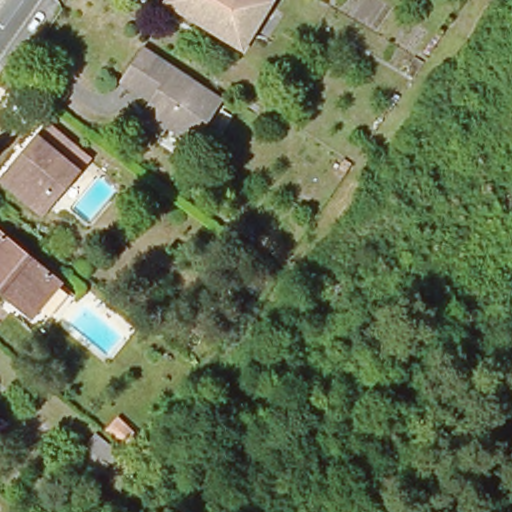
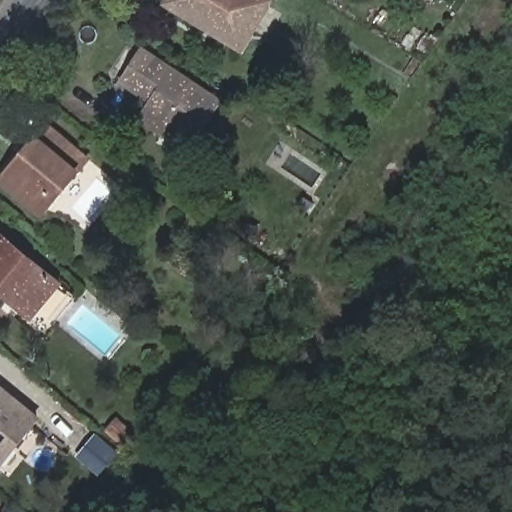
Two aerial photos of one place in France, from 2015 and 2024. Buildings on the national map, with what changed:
unchanged [(179,1),(175,7),(165,1),(166,0),(273,0),(246,42),(179,1)]
unchanged [(228,101),(199,145),(148,110),(154,101),(125,80),(147,47),(228,101)]
unchanged [(26,153),(21,149),(42,124),(84,159),(37,215),(0,184),(26,153)]
unchanged [(35,313),(11,293),(4,303),(0,300),(0,241),(36,272),(56,288),(35,313)]
new [(0,456),(0,390),(32,416),(0,456)]
unchanged [(79,463),(89,453),(85,450),(96,436),(120,457),(97,481),(79,463)]

